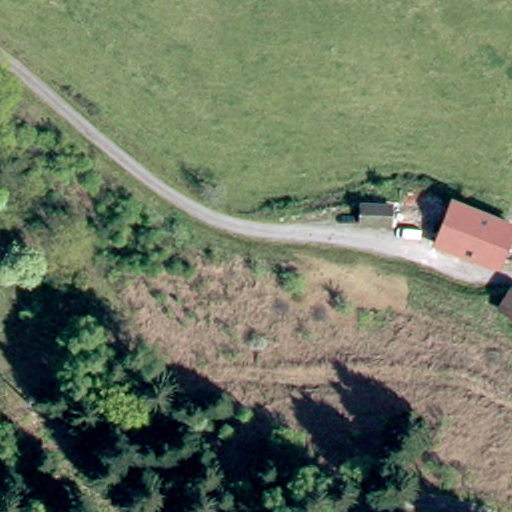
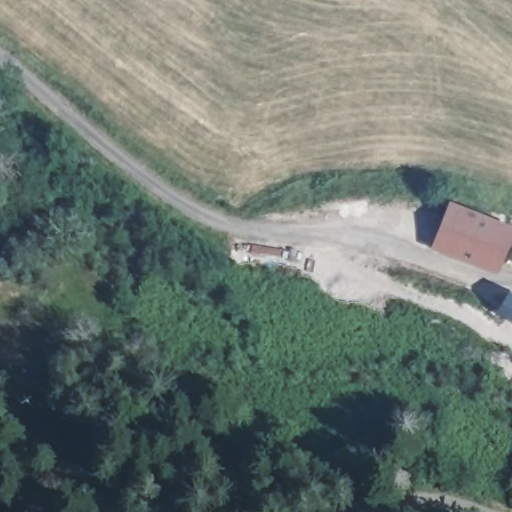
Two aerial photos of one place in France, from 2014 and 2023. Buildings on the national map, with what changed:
unchanged [(509,245),(498,244),(494,257),(445,244),(447,234),(456,202),(512,218),(512,235),(509,245)]
unchanged [(495,320),(512,295),(512,332),(495,320)]

